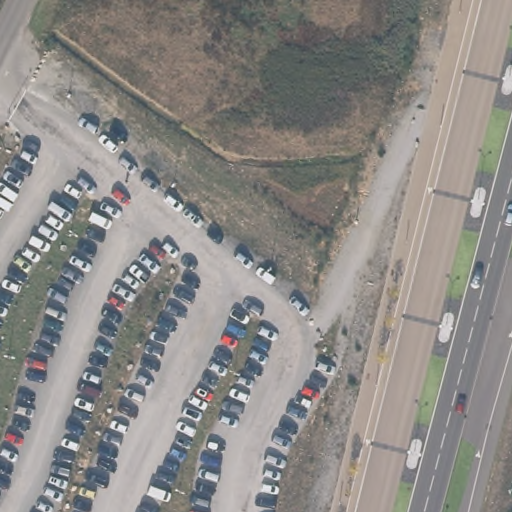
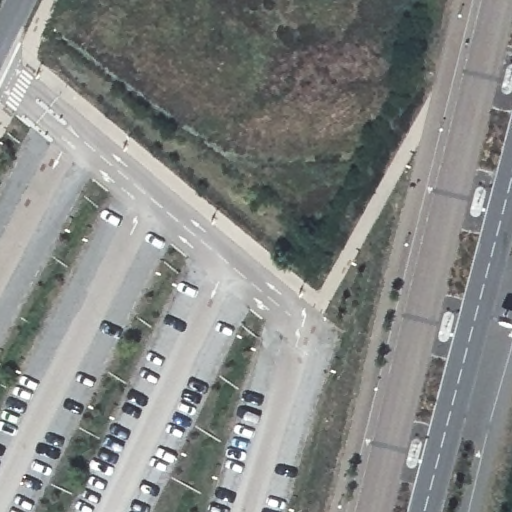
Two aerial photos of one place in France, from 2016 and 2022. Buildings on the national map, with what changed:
[]

